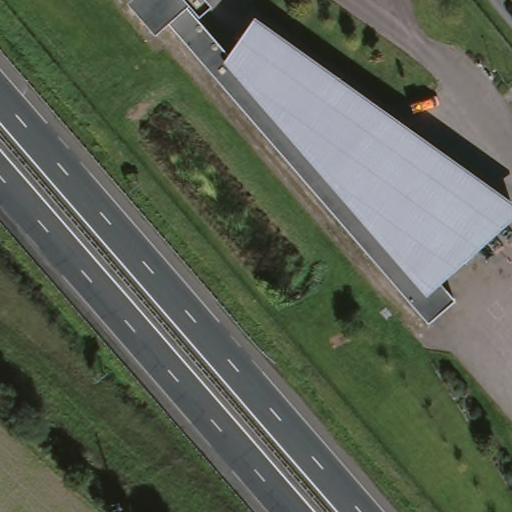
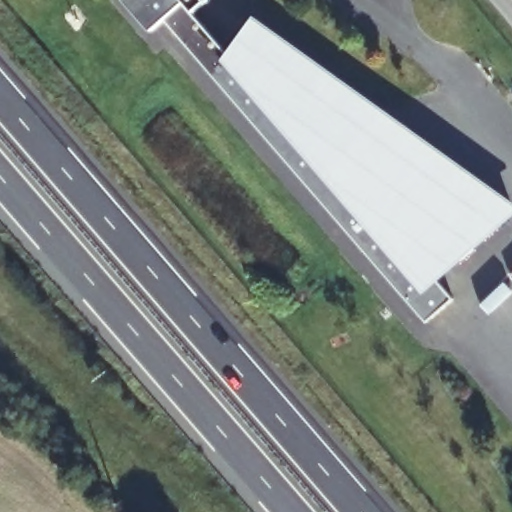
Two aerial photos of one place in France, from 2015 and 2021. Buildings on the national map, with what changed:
unchanged [(207,9),(198,17),(188,6),(186,7),(239,67),(262,47),(251,35),(257,27),(390,120),(393,142),(415,137),(418,160),(440,155),(443,177),(465,172),(468,195),(491,190),(494,212),(512,208),(512,214),(440,279),(459,301),(432,325),(166,26),(154,37),(135,16),(142,10),(136,2),(138,0),(205,0),(210,5),(207,9)]

